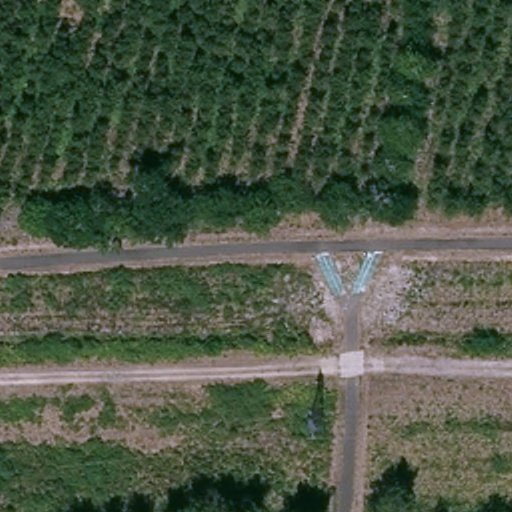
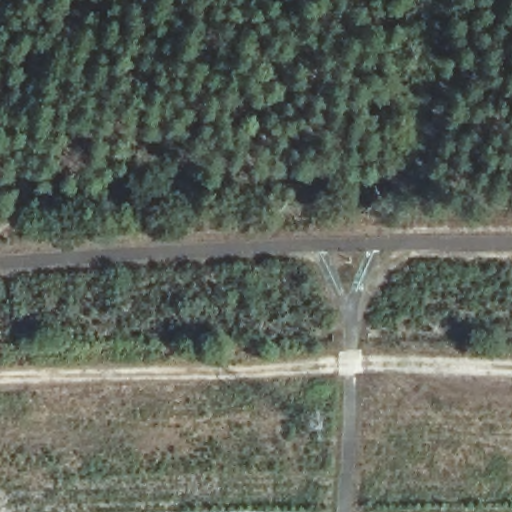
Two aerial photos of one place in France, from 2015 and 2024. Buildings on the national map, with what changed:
[]

